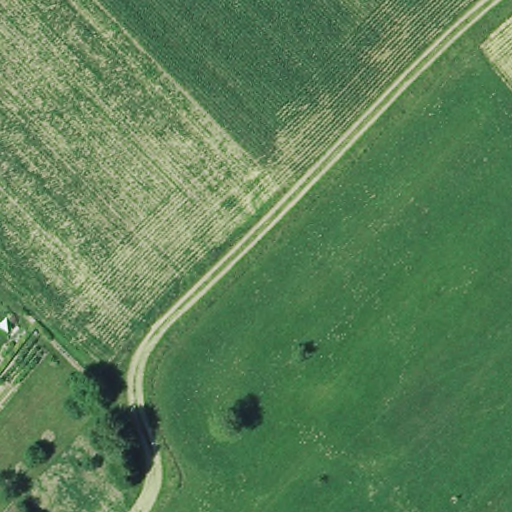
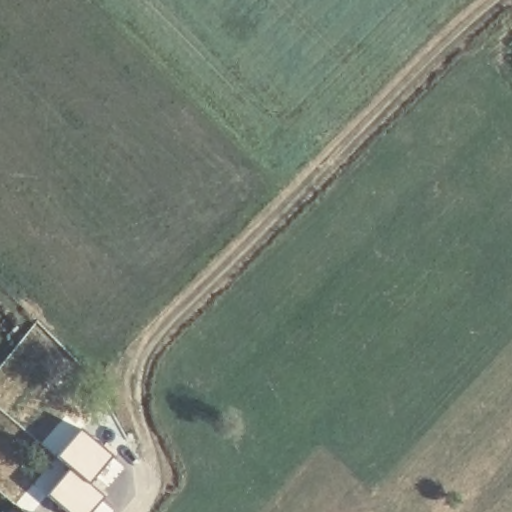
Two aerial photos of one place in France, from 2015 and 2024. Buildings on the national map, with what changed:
new [(115,452),(90,481),(107,496),(91,512),(66,512),(45,492),(69,467),(53,456),(84,423),(115,452)]
unchanged [(19,512),(9,512),(13,507),(19,512)]

